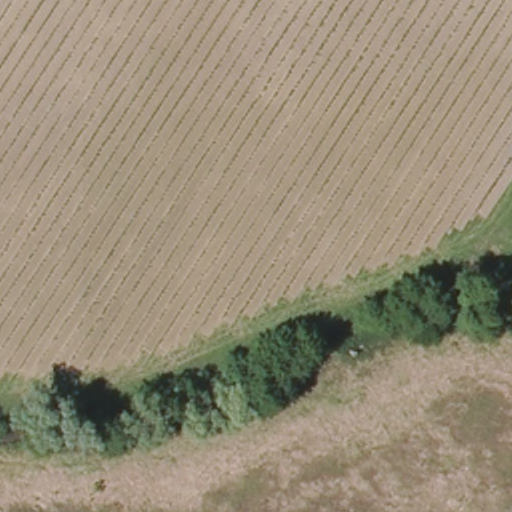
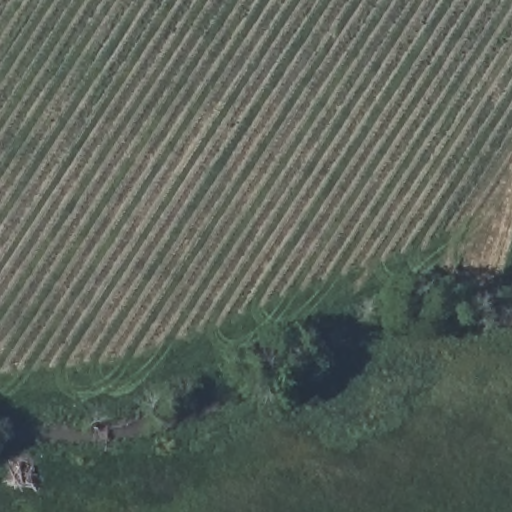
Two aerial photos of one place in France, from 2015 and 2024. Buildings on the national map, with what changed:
[]

